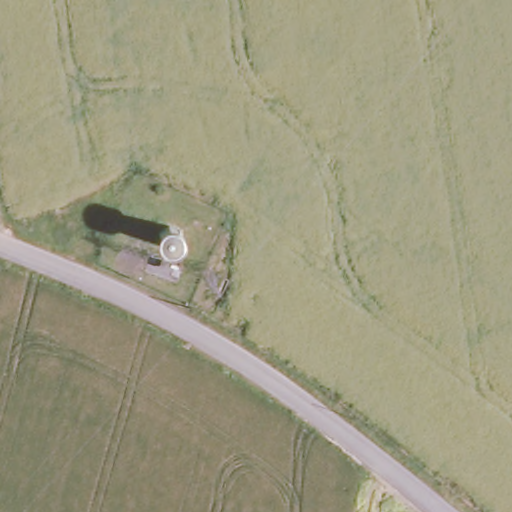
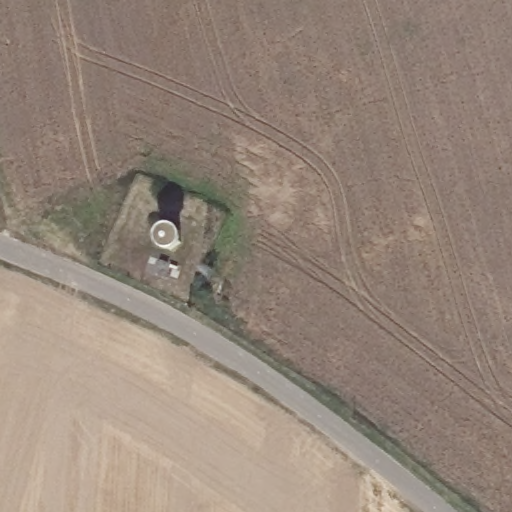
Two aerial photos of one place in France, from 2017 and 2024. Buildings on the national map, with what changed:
unchanged [(157,257),(164,260),(162,266),(155,263),(157,257)]

